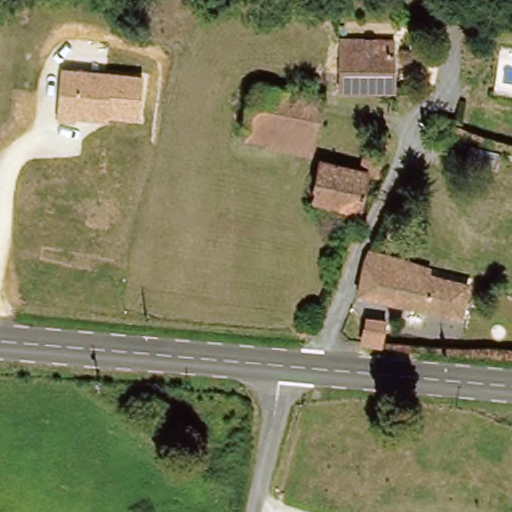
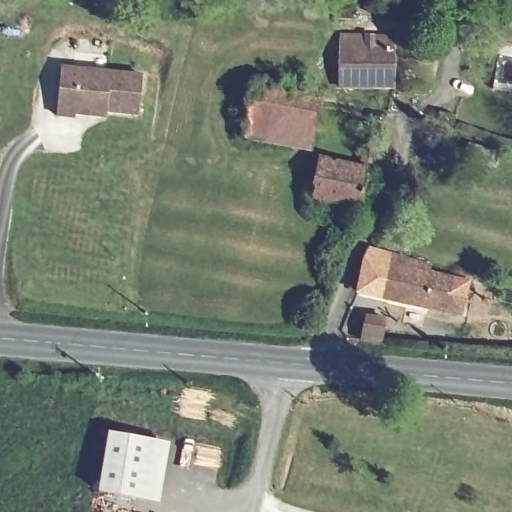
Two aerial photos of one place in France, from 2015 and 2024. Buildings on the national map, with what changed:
unchanged [(332,88),(340,39),(392,45),(385,93),(332,88)]
unchanged [(107,116),(107,121),(76,118),(75,123),(58,121),(62,67),(143,74),(140,118),(107,116)]
unchanged [(241,142),(251,83),(315,93),(306,151),(241,142)]
unchanged [(350,166),(358,125),(375,127),(368,169),(361,167),(350,166)]
unchanged [(341,210),(295,200),(306,161),(350,166),(341,210)]
unchanged [(373,247),(411,256),(407,272),(400,305),(360,296),(373,247)]
unchanged [(407,272),(470,291),(463,322),(400,305),(407,272)]
unchanged [(365,315),(386,317),(382,338),(363,336),(365,315)]
new [(97,494),(108,433),(168,443),(158,504),(97,494)]

